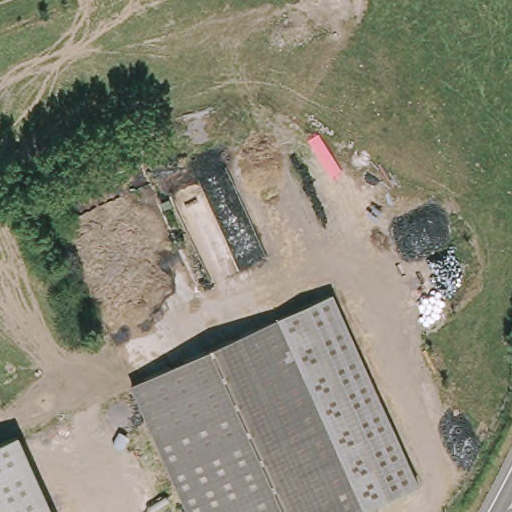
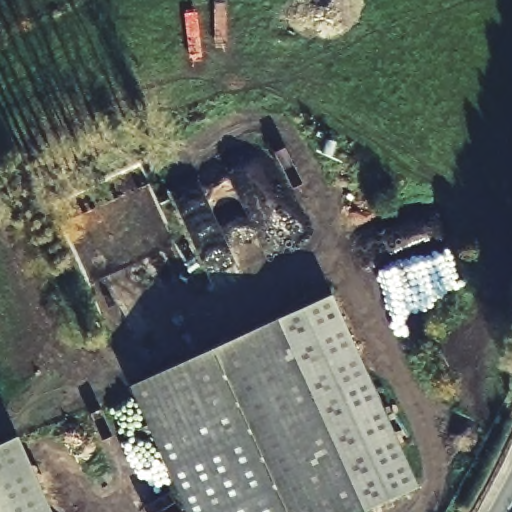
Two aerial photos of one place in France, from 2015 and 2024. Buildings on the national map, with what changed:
unchanged [(330,292),(418,486),(359,512),(188,512),(131,384),(330,292)]
unchanged [(49,512),(0,512),(0,447),(16,440),(49,512)]

